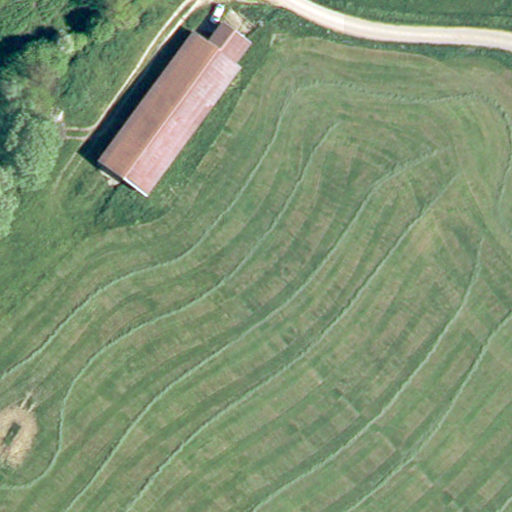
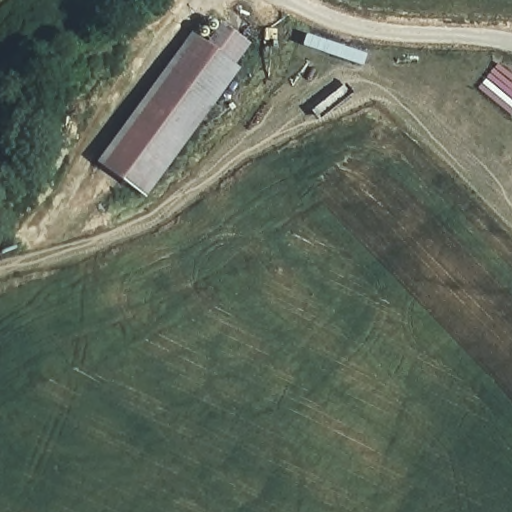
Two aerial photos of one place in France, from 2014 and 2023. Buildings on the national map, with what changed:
unchanged [(204,35),(218,45),(232,25),(256,43),(241,64),(148,193),(109,165),(204,35)]

